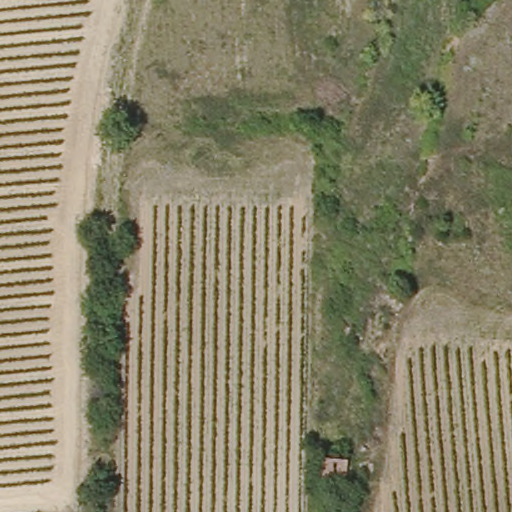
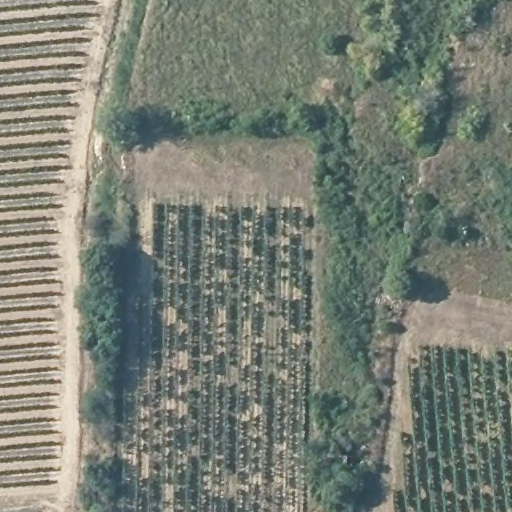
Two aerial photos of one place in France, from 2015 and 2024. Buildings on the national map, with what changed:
unchanged [(347,458),(345,482),(321,481),(322,456),(347,458)]

